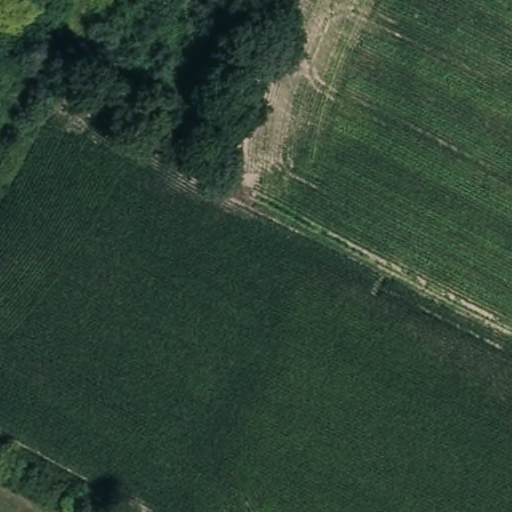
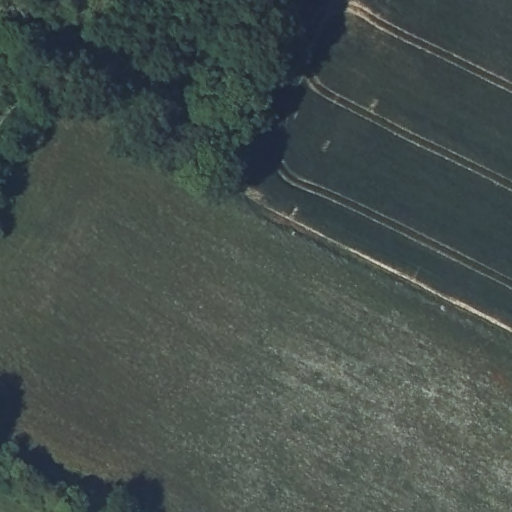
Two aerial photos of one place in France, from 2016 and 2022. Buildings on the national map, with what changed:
[]

